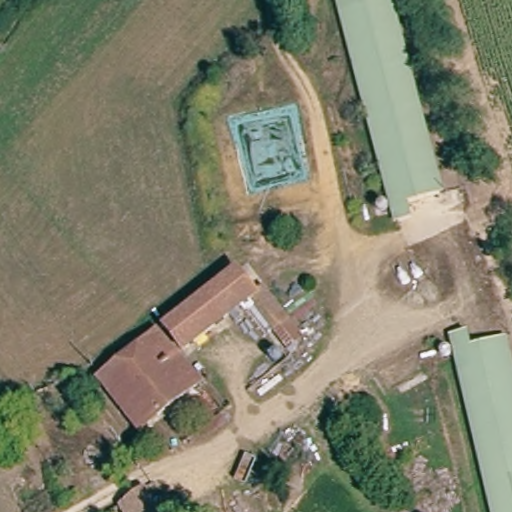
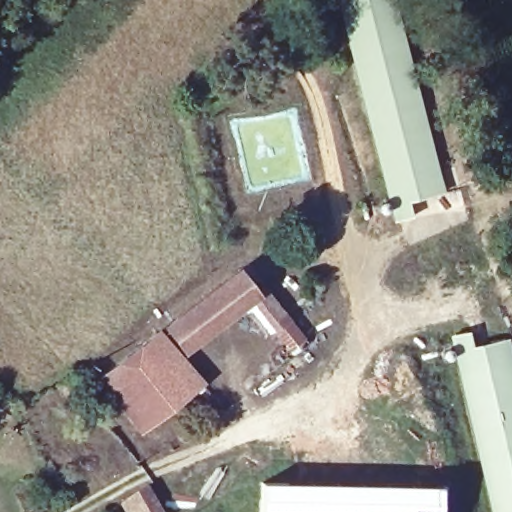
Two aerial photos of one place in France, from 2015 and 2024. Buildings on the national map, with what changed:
unchanged [(412,196),(416,215),(397,220),(339,0),(389,0),(439,189),(412,196)]
unchanged [(291,353),(276,333),(255,303),(182,354),(164,328),(238,275),(255,297),(264,294),(286,325),(301,345),(291,353)]
unchanged [(494,512),(450,336),(464,332),(468,350),(500,342),(512,389),(512,512),(494,512)]
unchanged [(154,335),(195,390),(135,432),(95,377),(154,335)]
new [(438,483),(437,512),(261,512),(262,480),(438,483)]
unchanged [(124,512),(118,503),(139,488),(156,512),(124,512)]

